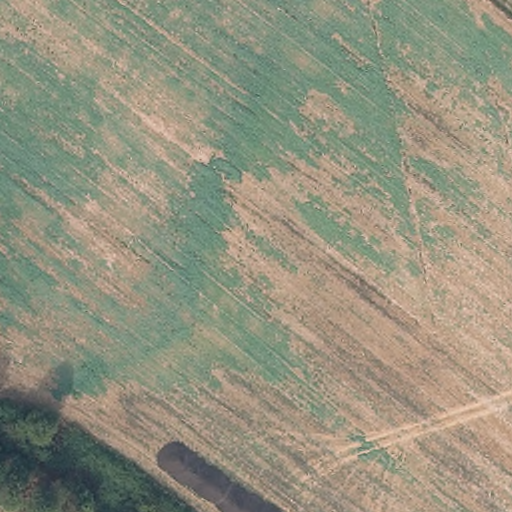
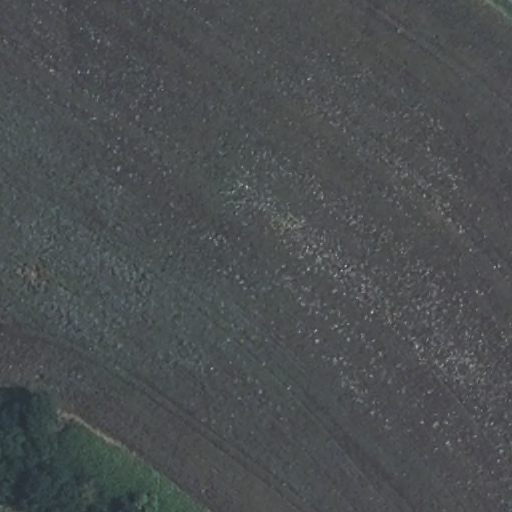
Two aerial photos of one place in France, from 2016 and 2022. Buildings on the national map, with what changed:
[]

